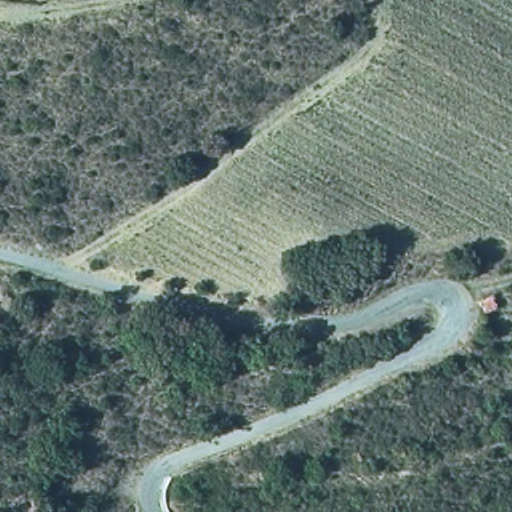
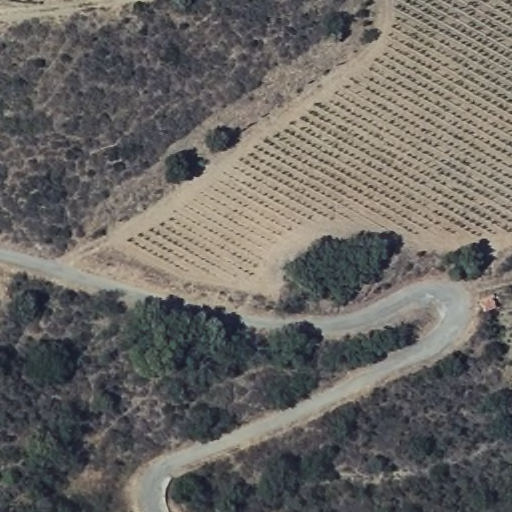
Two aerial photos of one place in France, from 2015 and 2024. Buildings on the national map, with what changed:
unchanged [(477,298),(495,292),(500,303),(483,311),(477,298)]

